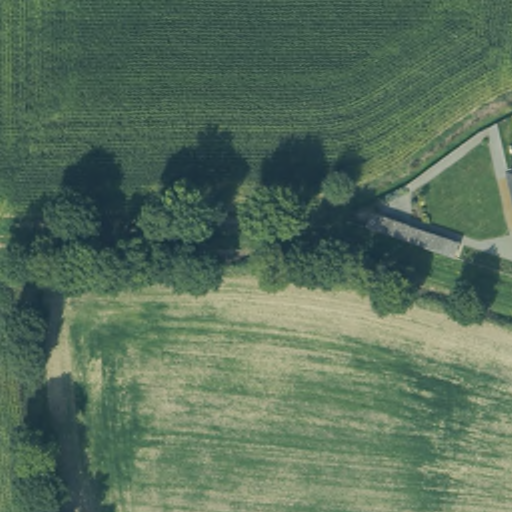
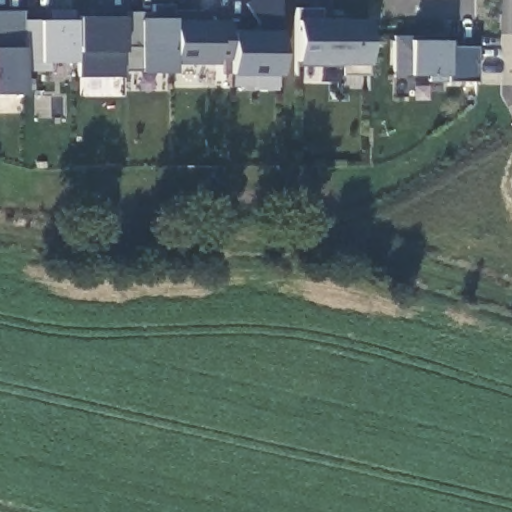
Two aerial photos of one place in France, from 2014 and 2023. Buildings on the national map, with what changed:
new [(280,74),(227,74),(226,64),(171,65),(171,72),(137,71),(124,69),(123,16),(140,17),(171,18),(171,22),(215,22),(231,21),(232,28),(261,27),(243,4),(250,0),(279,0),(281,29),(280,74)]
new [(324,18),(364,18),(367,64),(366,76),(342,76),(341,68),(294,67),(294,62),(295,19),(294,8),(321,8),(324,18)]
new [(72,62),(50,62),(49,69),(21,71),(21,92),(0,92),(0,10),(22,10),(22,20),(38,19),(49,18),(47,10),(72,10),(73,19),(72,62)]
new [(475,83),(445,83),(428,83),(429,74),(408,74),(393,75),(394,39),(407,39),(445,38),(445,48),(474,46),(475,83)]
demolished [(512,173),(512,181),(510,173),(512,173)]
demolished [(435,227),(431,241),(387,224),(391,212),(435,227)]

